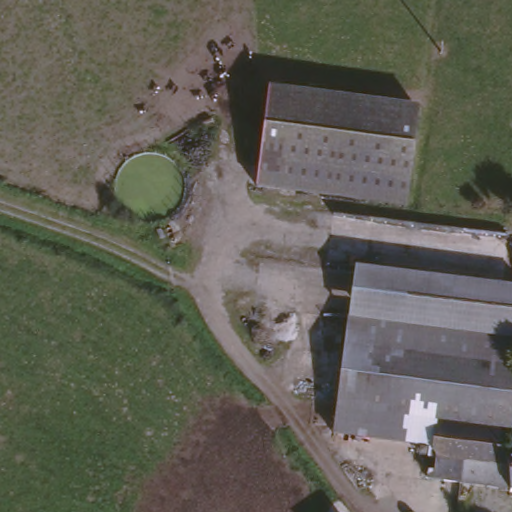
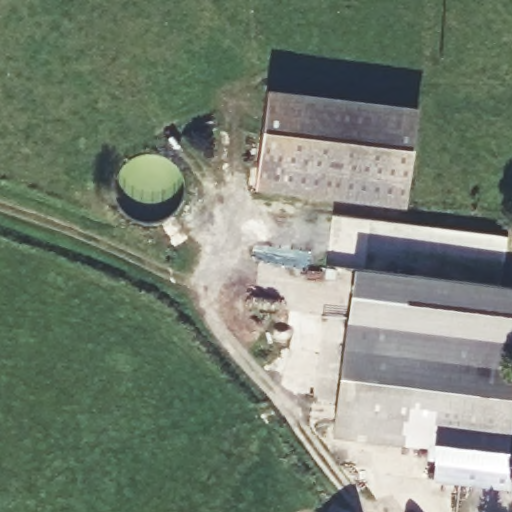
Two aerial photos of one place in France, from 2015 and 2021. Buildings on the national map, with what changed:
unchanged [(406,206),(253,188),(264,94),(417,112),(406,206)]
unchanged [(355,264),(400,270),(398,282),(390,322),(346,316),(355,264)]
unchanged [(512,287),(512,341),(390,322),(398,282),(400,270),(512,287)]
unchanged [(435,432),(430,432),(429,439),(400,435),(380,432),(371,430),(328,424),(346,318),(390,324),(393,325),(512,343),(512,440),(468,436),(435,432)]
unchanged [(431,485),(432,472),(432,459),(435,432),(468,436),(460,489),(431,485)]
unchanged [(460,489),(468,436),(512,440),(510,459),(509,494),(460,489)]
unchanged [(510,459),(512,459),(512,494),(509,494),(510,459)]

